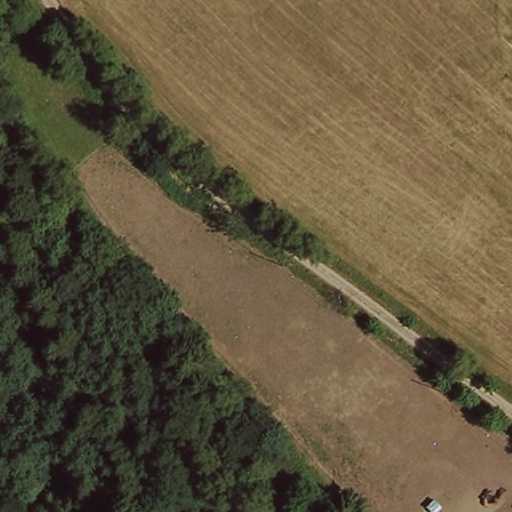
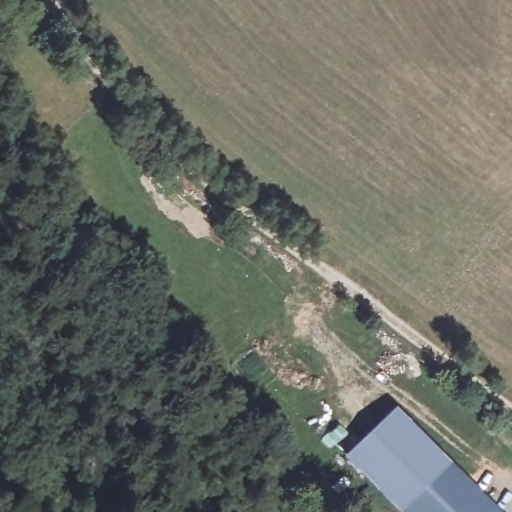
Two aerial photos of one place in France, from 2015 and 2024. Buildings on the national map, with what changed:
new [(401,511),(346,456),(398,407),(453,462),(503,512),(402,512),(401,511)]

